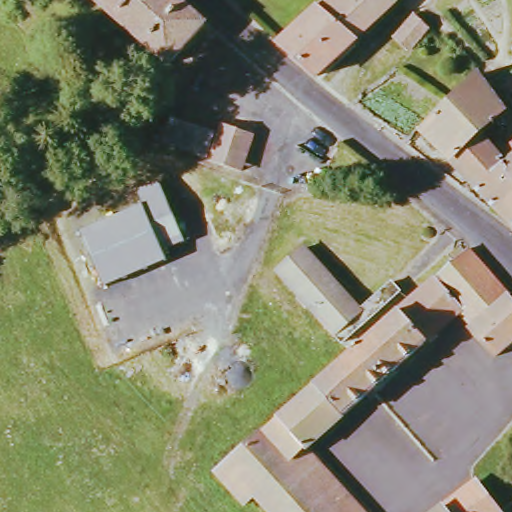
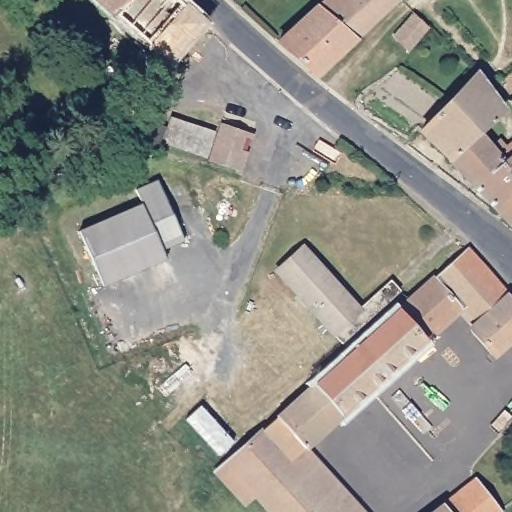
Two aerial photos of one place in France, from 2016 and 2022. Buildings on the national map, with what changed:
unchanged [(102,0),(175,0),(209,29),(172,67),(102,0)]
unchanged [(403,5),(360,45),(321,11),(332,0),(397,0),(403,5)]
unchanged [(360,45),(320,81),(281,49),(321,11),(360,45)]
unchanged [(445,46),(437,53),(425,42),(414,54),(402,44),(399,41),(418,20),(445,46)]
unchanged [(507,113),(484,135),(453,162),(426,134),(452,107),(481,77),(487,85),(507,113)]
unchanged [(209,165),(164,150),(174,124),(217,138),(209,165)]
unchanged [(167,134),(160,153),(149,149),(156,130),(167,134)]
unchanged [(256,143),(245,177),(213,166),(224,131),(256,143)]
unchanged [(512,153),(512,165),(505,171),(512,179),(512,202),(501,212),(453,162),(484,135),(505,158),(512,153)]
unchanged [(512,165),(512,179),(505,171),(512,165)]
unchanged [(320,176),(316,182),(310,178),(313,172),(320,176)]
unchanged [(163,180),(188,241),(166,250),(170,260),(107,287),(83,232),(146,205),(140,190),(163,180)]
unchanged [(512,202),(512,225),(501,212),(512,202)]
unchanged [(315,247),(374,313),(405,285),(411,292),(354,342),(288,270),(315,247)]
unchanged [(501,362),(476,335),(483,329),(469,314),(311,454),(362,512),(270,512),(260,499),(249,510),(219,478),(472,256),(512,301),(512,352),(501,362)]
unchanged [(492,512),(441,512),(474,487),(492,512)]

